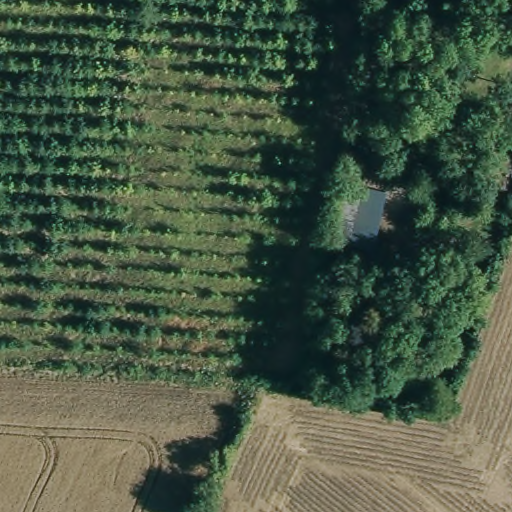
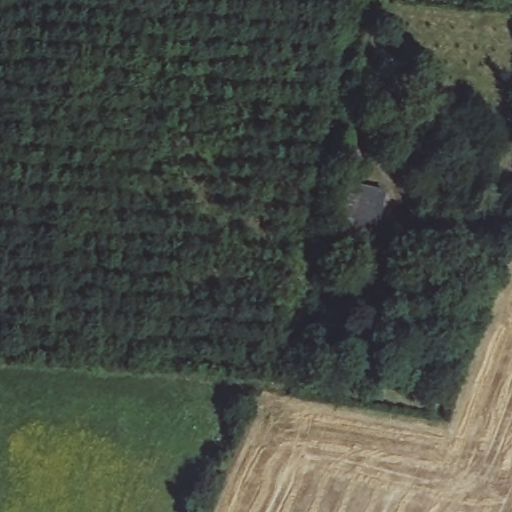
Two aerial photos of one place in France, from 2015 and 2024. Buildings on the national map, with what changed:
unchanged [(342,184),(385,191),(380,226),(337,219),(342,184)]

